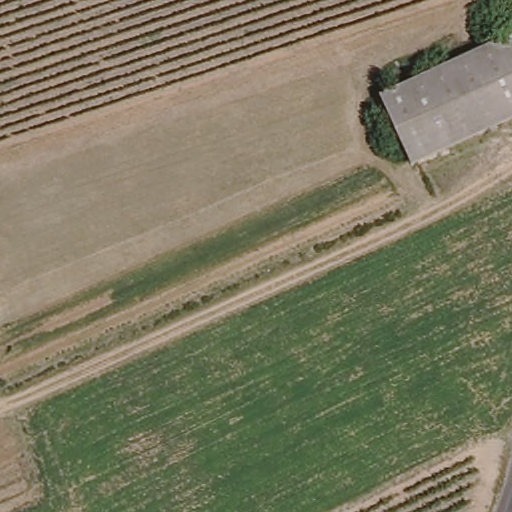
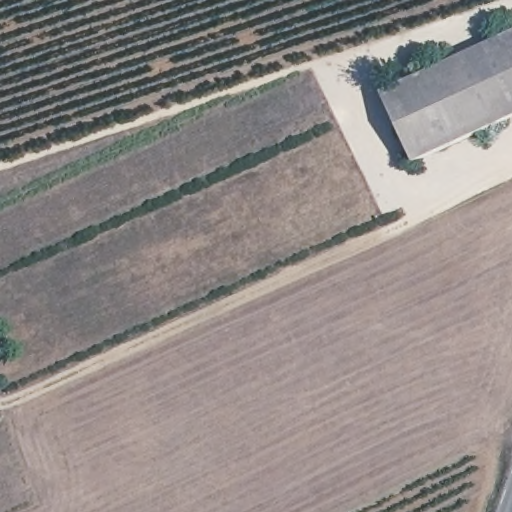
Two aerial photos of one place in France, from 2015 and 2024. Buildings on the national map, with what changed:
unchanged [(381,95),(512,35),(512,116),(411,164),(381,95)]

